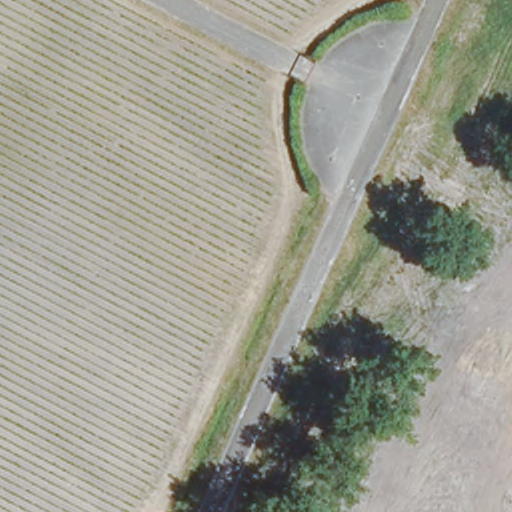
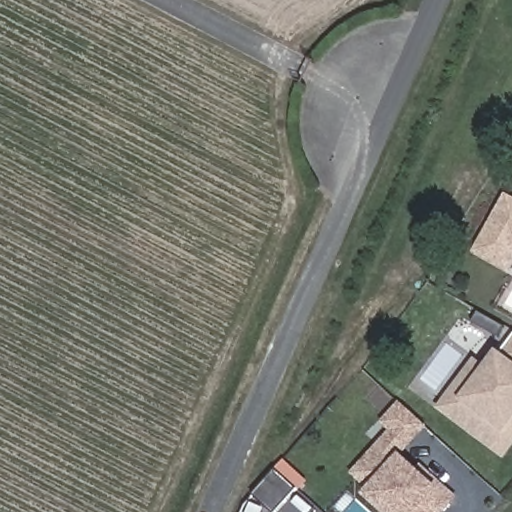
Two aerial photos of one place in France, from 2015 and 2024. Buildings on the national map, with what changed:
new [(472,251),(505,193),(512,197),(512,259),(506,270),(472,251)]
new [(454,416),(464,400),(498,356),(512,337),(512,417),(503,428),(492,444),(454,416)]
new [(367,490),(350,474),(389,430),(380,421),(398,400),(425,426),(400,454),(417,468),(421,463),(457,499),(445,512),(380,512),(362,496),(367,490)]
new [(277,467),(300,487),(276,512),(274,512),(253,492),(262,483),(277,467)]

